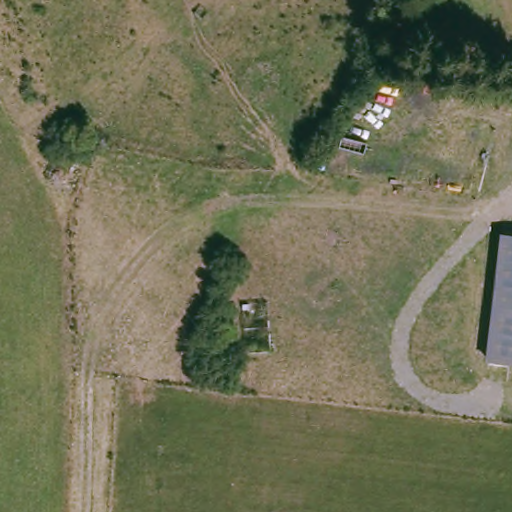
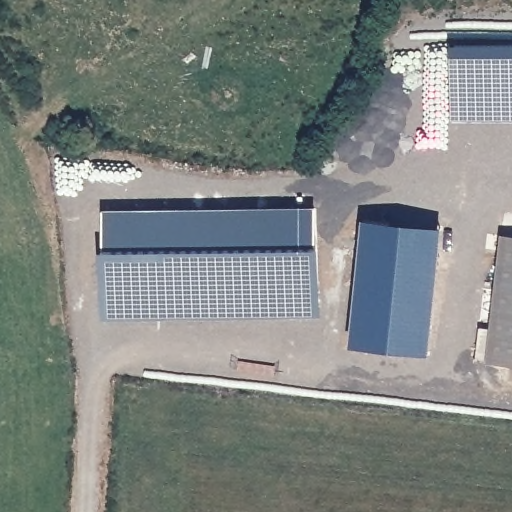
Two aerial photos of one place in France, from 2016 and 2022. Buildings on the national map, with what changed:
new [(512,60),(512,120),(459,120),(459,60),(512,60)]
new [(316,204),(317,312),(107,313),(106,207),(316,204)]
new [(366,221),(442,230),(428,351),(352,342),(366,221)]
unchanged [(512,364),(487,361),(504,237),(512,238),(512,364)]

